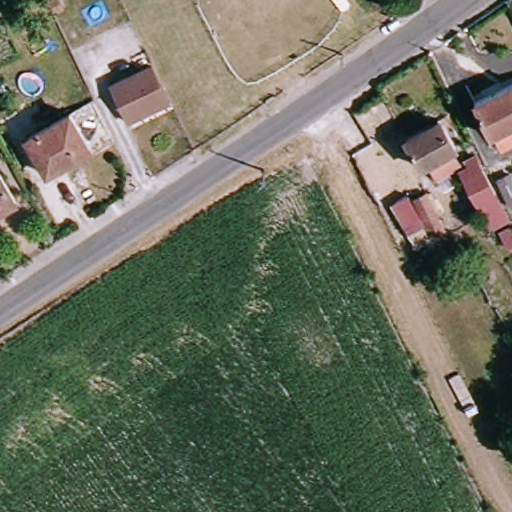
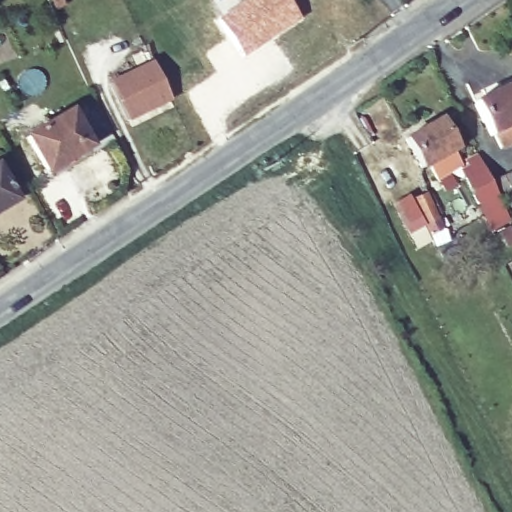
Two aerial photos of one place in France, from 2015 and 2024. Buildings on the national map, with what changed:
new [(243,0),(289,0),(301,15),(244,56),(218,18),(243,0)]
unchanged [(130,123),(111,87),(152,66),(171,102),(130,123)]
unchanged [(512,92),(512,133),(503,137),(487,104),(512,92)]
unchanged [(29,140),(71,114),(93,149),(50,175),(29,140)]
unchanged [(407,142),(441,122),(459,153),(425,172),(407,142)]
unchanged [(478,155),(495,184),(512,177),(512,208),(509,209),(512,219),(512,225),(494,234),(461,164),(478,155)]
unchanged [(0,213),(0,175),(17,202),(0,213)]
unchanged [(411,195),(413,198),(430,190),(445,237),(416,251),(394,203),(411,195)]

